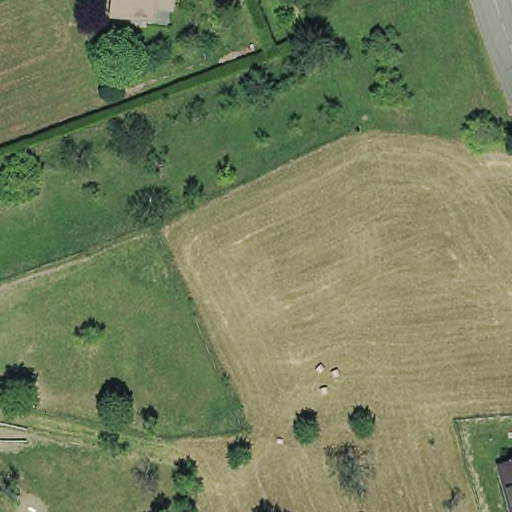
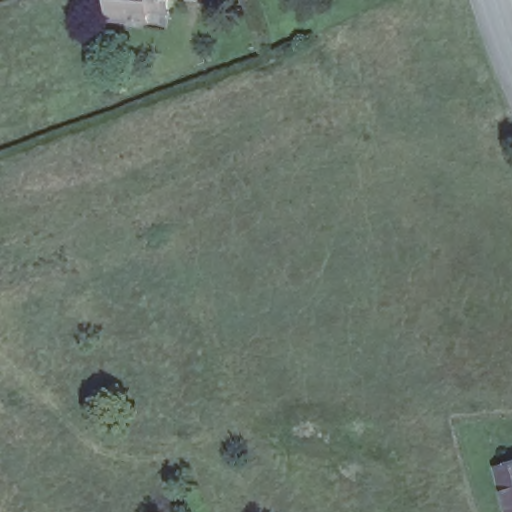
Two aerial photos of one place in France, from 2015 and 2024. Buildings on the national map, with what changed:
unchanged [(145,25),(108,22),(110,0),(167,0),(165,16),(145,14),(145,25)]
unchanged [(501,512),(490,473),(512,467),(512,512),(501,512)]

